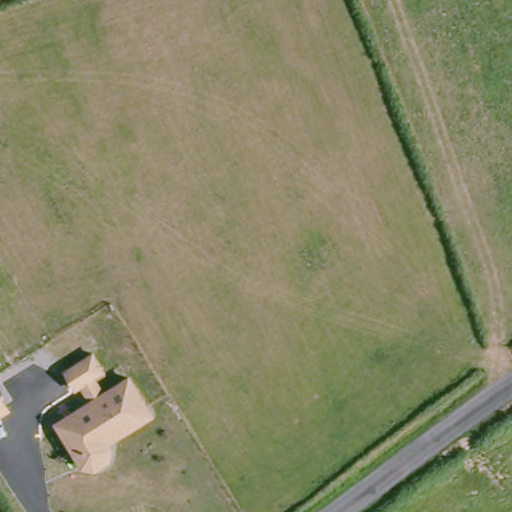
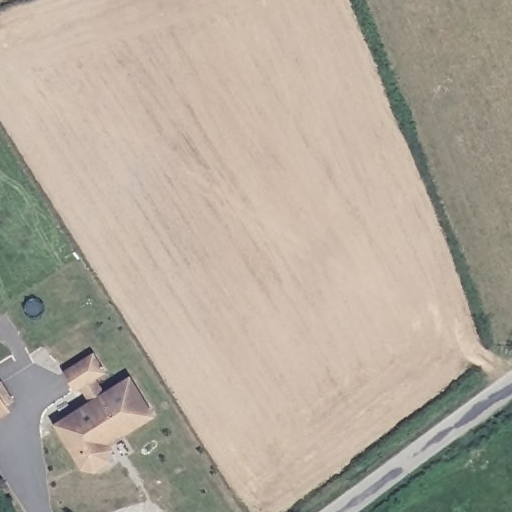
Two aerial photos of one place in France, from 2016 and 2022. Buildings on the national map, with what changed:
unchanged [(92,471),(78,466),(52,422),(86,400),(78,387),(72,392),(60,371),(90,352),(103,373),(95,379),(102,390),(127,375),(153,416),(111,443),(109,460),(92,471)]
unchanged [(0,417),(0,397),(8,411),(0,417)]

